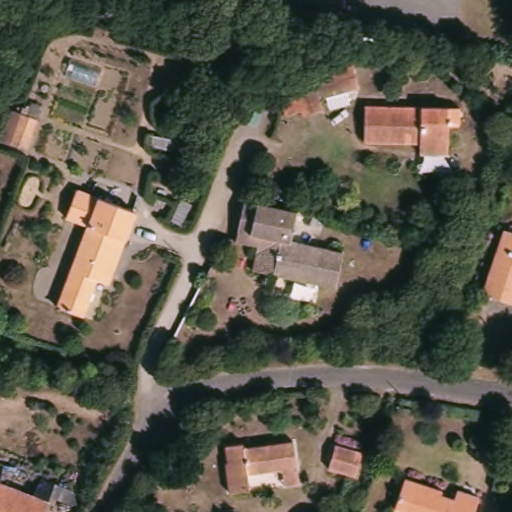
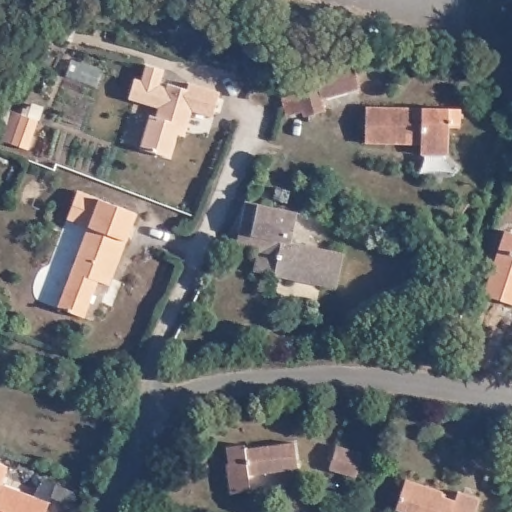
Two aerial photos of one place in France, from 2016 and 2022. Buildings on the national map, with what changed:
unchanged [(298,84),(296,73),(355,63),(358,86),(322,92),(324,105),(301,108),(300,103),(285,105),(283,95),(282,85),(290,85),(298,84)]
new [(130,81),(137,83),(142,67),(159,72),(155,88),(163,90),(165,85),(184,91),(185,85),(216,94),(210,118),(188,112),(181,137),(174,135),(167,160),(137,151),(146,117),(152,119),(155,110),(125,101),(130,81)]
unchanged [(459,107),(458,121),(450,122),(447,155),(420,154),(420,143),(363,140),(365,104),(459,107)]
unchanged [(36,124),(25,154),(10,149),(21,119),(36,124)]
unchanged [(96,280),(82,315),(56,306),(86,226),(65,218),(76,189),(135,211),(110,276),(107,285),(96,280)]
unchanged [(287,240),(340,251),(335,285),(252,270),(258,237),(238,235),(244,204),(251,205),(290,212),(292,212),(287,240)]
unchanged [(512,228),(512,299),(481,291),(502,225),(512,228)]
unchanged [(283,483),(283,466),(249,468),(248,485),(229,485),(227,457),(229,457),(228,440),(246,439),(246,442),(295,440),(297,466),(298,482),(283,483)]
unchanged [(368,450),(358,474),(334,464),(343,440),(368,450)]
unchanged [(44,512),(0,512),(0,478),(50,498),(44,512)]
unchanged [(430,498),(424,512),(399,512),(394,510),(405,479),(433,488),(431,492),(430,498)]
unchanged [(433,488),(443,491),(441,496),(455,501),(457,493),(476,499),(472,512),(424,512),(430,498),(431,492),(433,488)]

